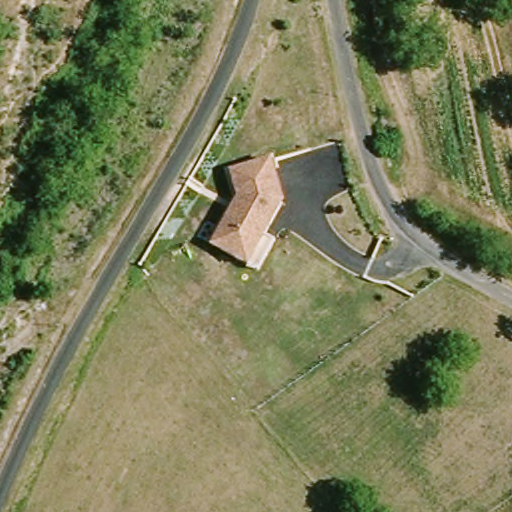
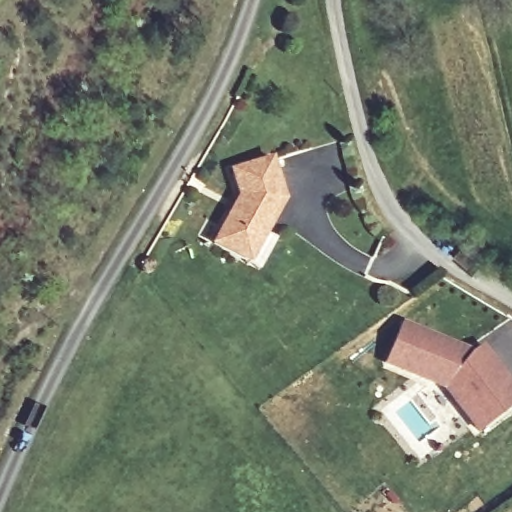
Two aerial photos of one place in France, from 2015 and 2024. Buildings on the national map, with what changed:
unchanged [(259,274),(234,259),(212,248),(230,215),(236,203),(238,200),(231,174),(270,163),(282,206),(264,238),(275,244),(259,274)]
new [(476,352),(484,346),(512,383),(512,409),(477,436),(462,415),(446,426),(421,392),(431,385),(387,365),(406,323),(476,352)]

